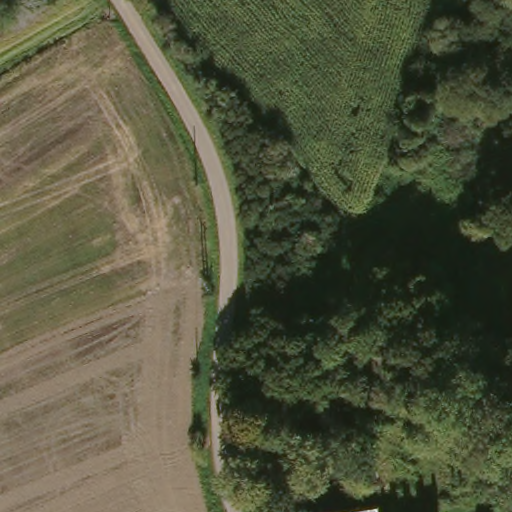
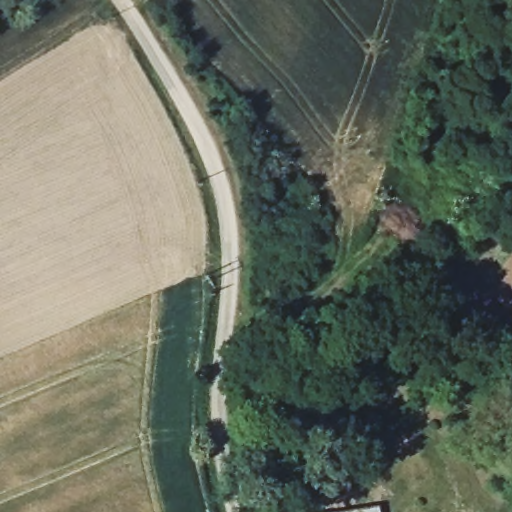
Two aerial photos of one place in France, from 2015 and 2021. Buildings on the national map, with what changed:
unchanged [(374,512),(350,512),(349,512),(372,505),(374,512)]

